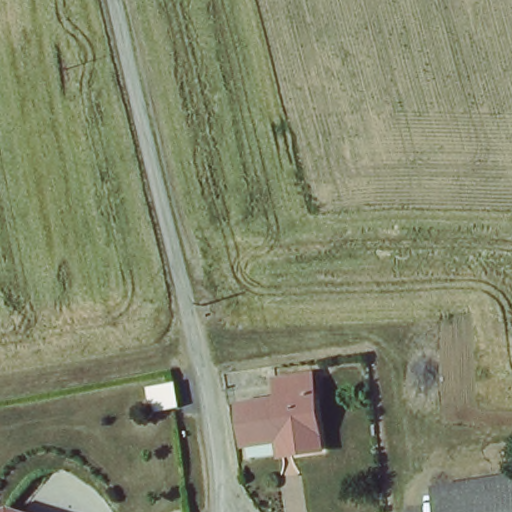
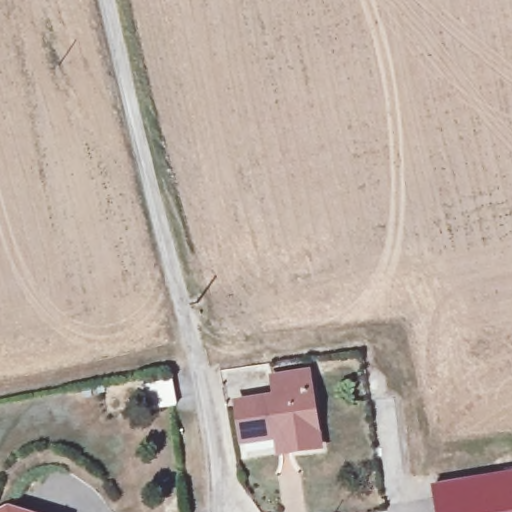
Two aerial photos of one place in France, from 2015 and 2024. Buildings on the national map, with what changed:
unchanged [(273,436),(250,439),(245,404),(279,399),(275,379),(312,373),(323,447),(292,452),(277,454),(273,436)]
unchanged [(433,488),(512,474),(512,512),(437,512),(433,488)]
unchanged [(19,512),(0,512),(0,510),(4,508),(19,512)]

